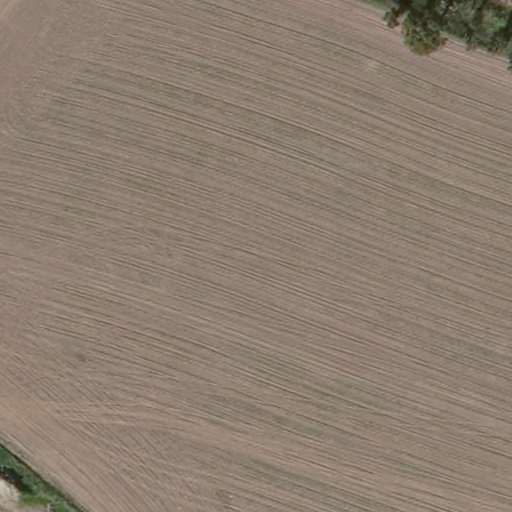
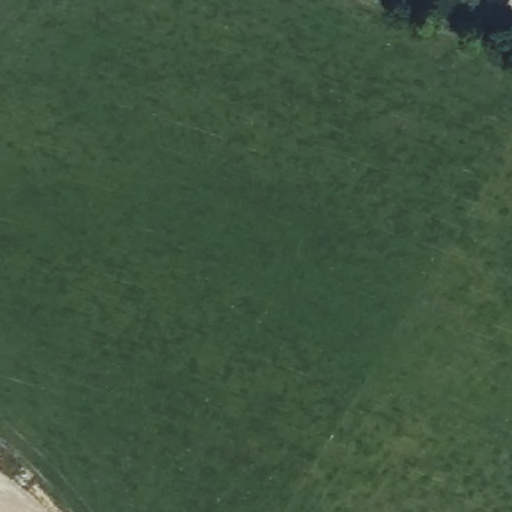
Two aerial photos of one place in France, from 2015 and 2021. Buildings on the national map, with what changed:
[]

